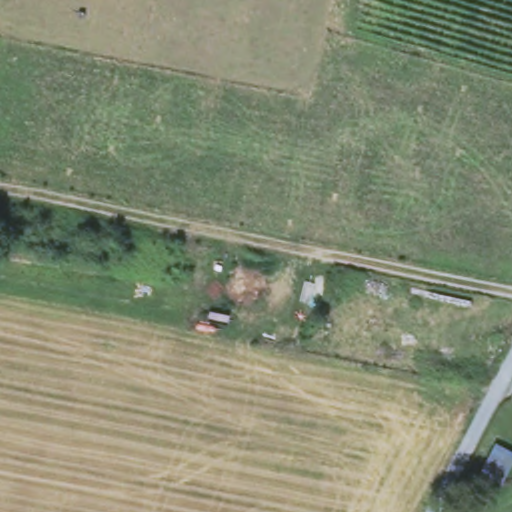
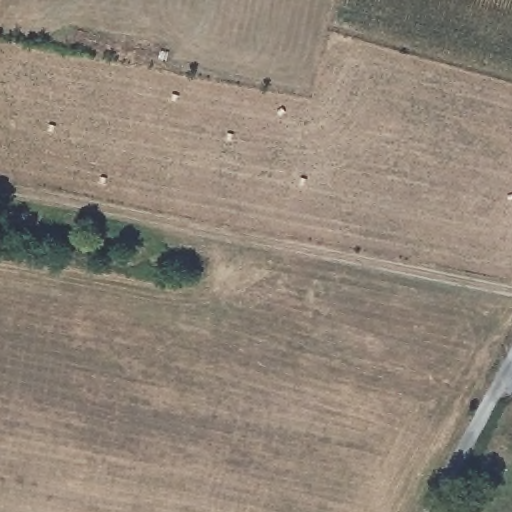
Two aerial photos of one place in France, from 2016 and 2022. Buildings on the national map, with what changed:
unchanged [(512,457),(512,458),(493,494),(472,480),(490,446),(512,457)]

